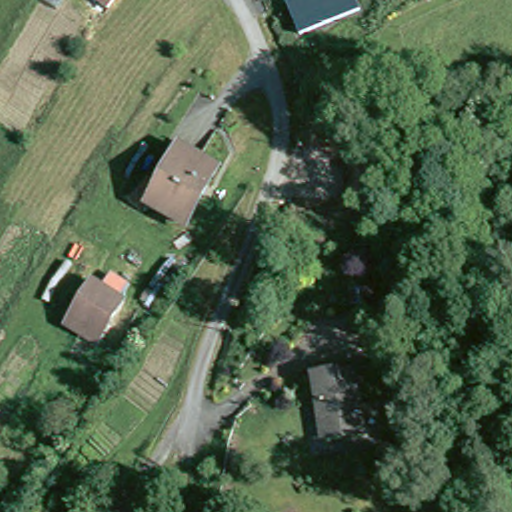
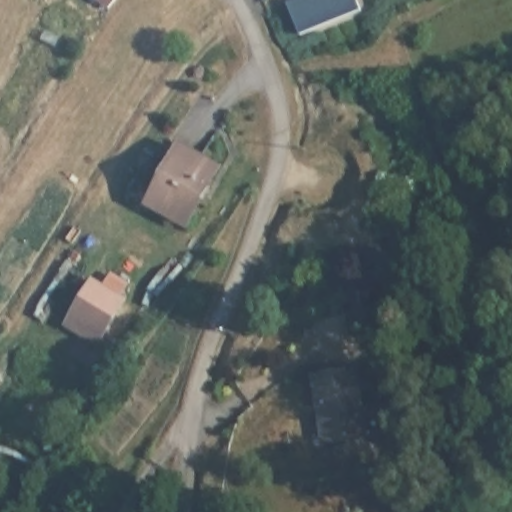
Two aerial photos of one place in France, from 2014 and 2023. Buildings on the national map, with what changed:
unchanged [(300,36),(286,0),(356,0),(361,11),(300,36)]
unchanged [(180,221),(148,196),(190,149),(222,175),(180,221)]
unchanged [(66,318),(73,310),(100,282),(122,303),(95,333),(88,341),(66,318)]
unchanged [(325,443),(312,384),(353,375),(366,435),(325,443)]

